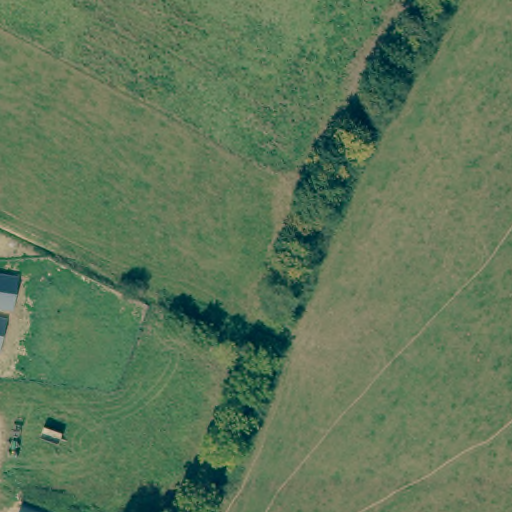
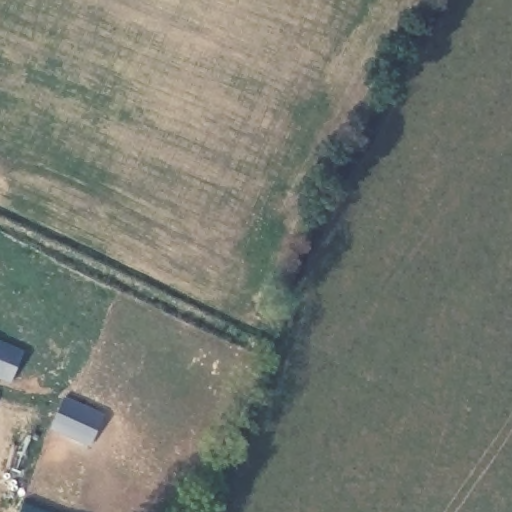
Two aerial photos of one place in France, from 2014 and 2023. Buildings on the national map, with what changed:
new [(87,450),(48,433),(61,398),(102,415),(87,450)]
unchanged [(63,509),(72,512),(19,512),(25,496),(63,509)]

